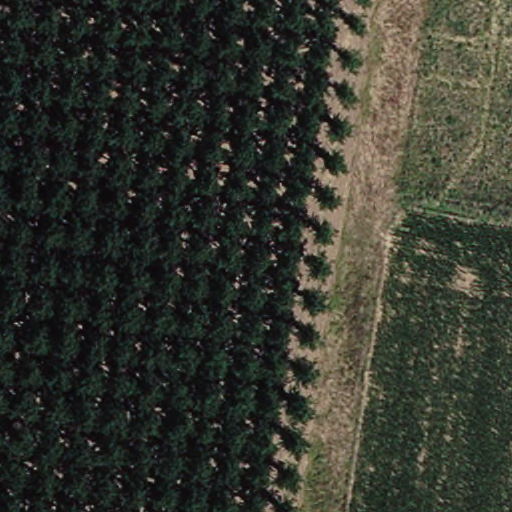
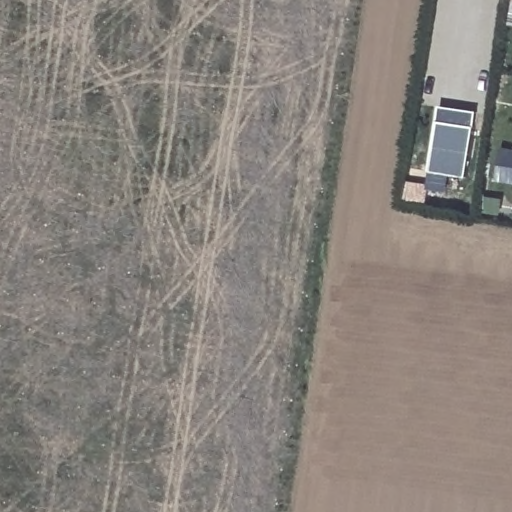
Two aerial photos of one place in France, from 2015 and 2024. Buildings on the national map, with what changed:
new [(443,109),(477,113),(466,179),(433,173),(443,109)]
new [(497,179),(502,150),(512,151),(512,182),(497,179)]

